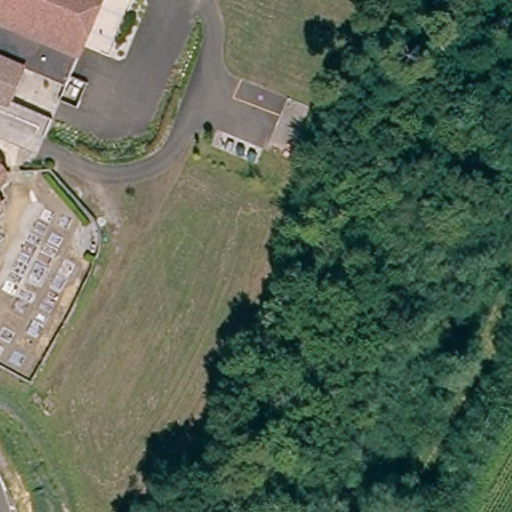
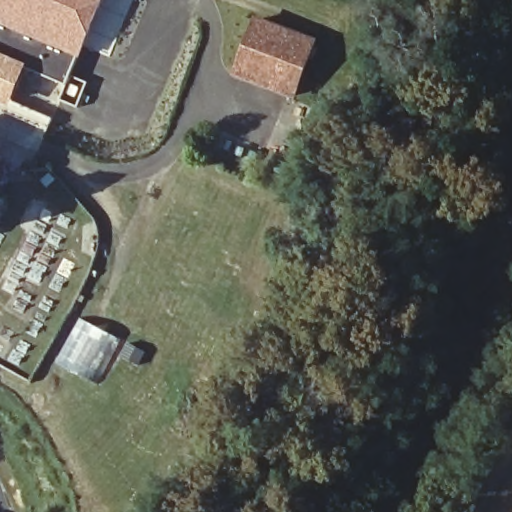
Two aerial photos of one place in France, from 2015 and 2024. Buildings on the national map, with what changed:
unchanged [(75,107),(57,99),(63,85),(27,69),(21,67),(21,66),(8,96),(7,98),(0,95),(0,0),(103,0),(69,74),(86,82),(75,107)]
new [(296,95),(236,72),(256,16),(317,39),(296,95)]
demolished [(286,174),(261,163),(285,111),(309,123),(286,174)]
unchanged [(5,158),(6,159),(6,164),(17,173),(12,185),(0,186),(0,155),(5,158)]
unchanged [(2,190),(5,199),(6,207),(4,213),(0,219),(0,189),(2,190)]
new [(78,317),(120,339),(98,387),(52,363),(78,317)]

